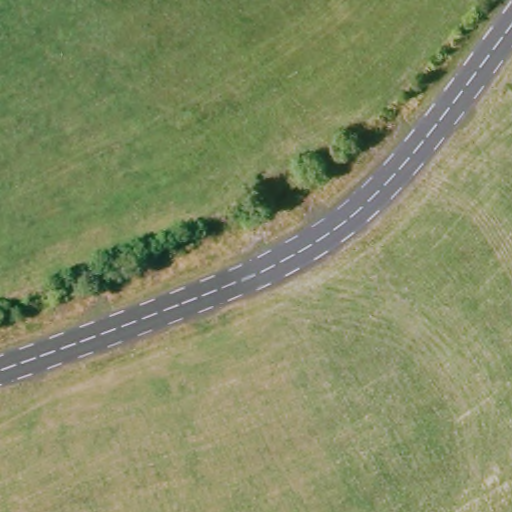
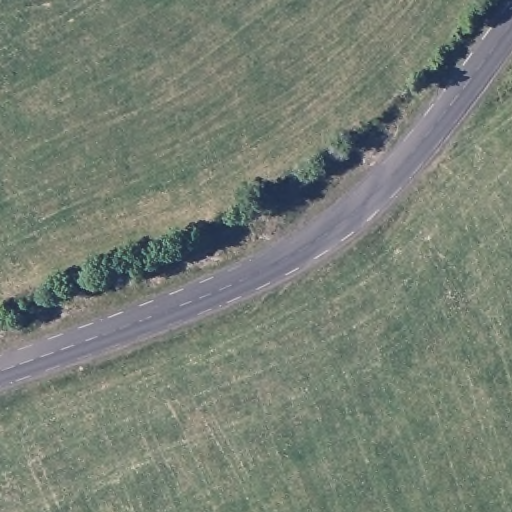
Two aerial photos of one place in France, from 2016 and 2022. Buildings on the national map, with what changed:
[]

